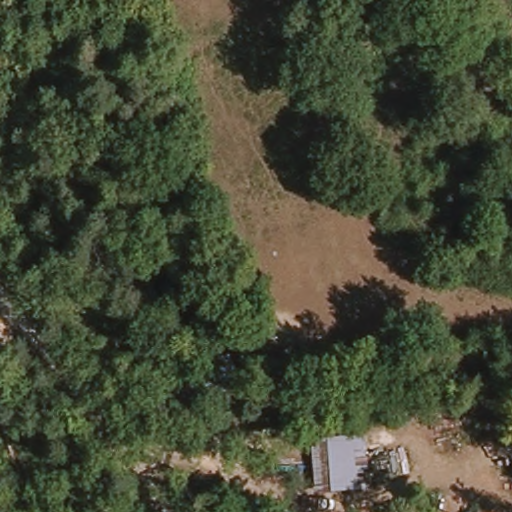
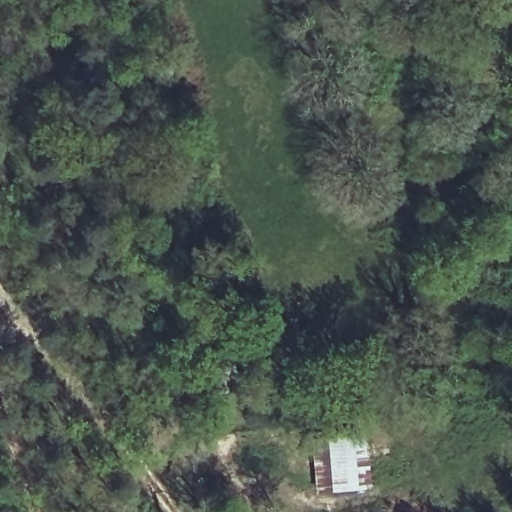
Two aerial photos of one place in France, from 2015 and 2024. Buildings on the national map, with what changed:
unchanged [(170,370),(239,352),(245,382),(179,400),(170,370)]
unchanged [(320,495),(315,437),(364,435),(367,492),(320,495)]

